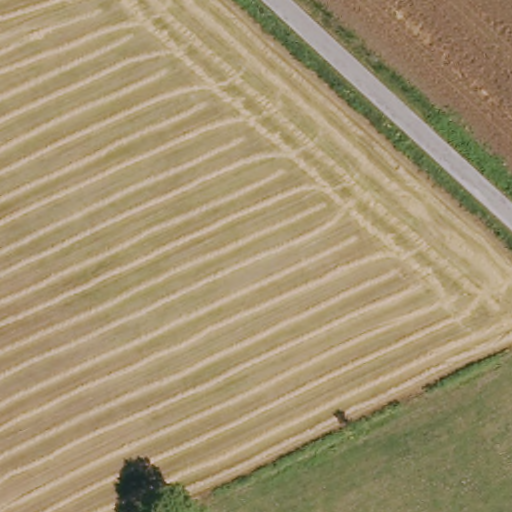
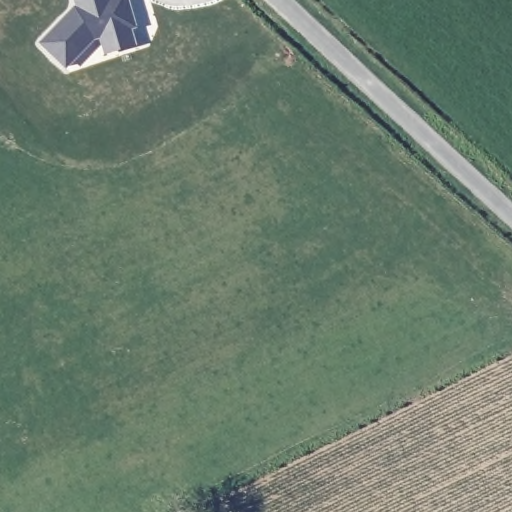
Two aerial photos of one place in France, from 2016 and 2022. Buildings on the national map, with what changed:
new [(93,37),(65,65),(41,42),(75,7),(78,6),(76,0),(107,0),(110,2),(114,0),(127,0),(133,26),(93,37)]

